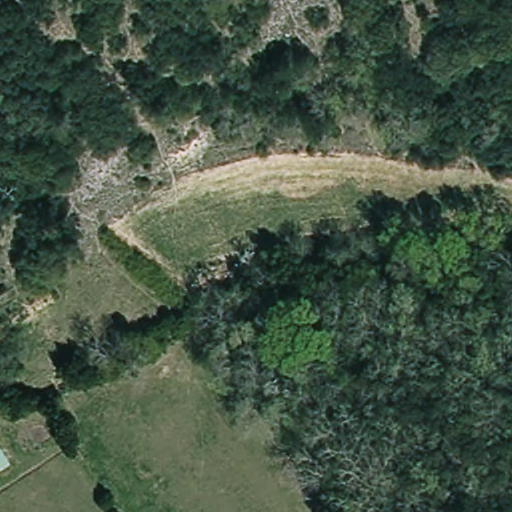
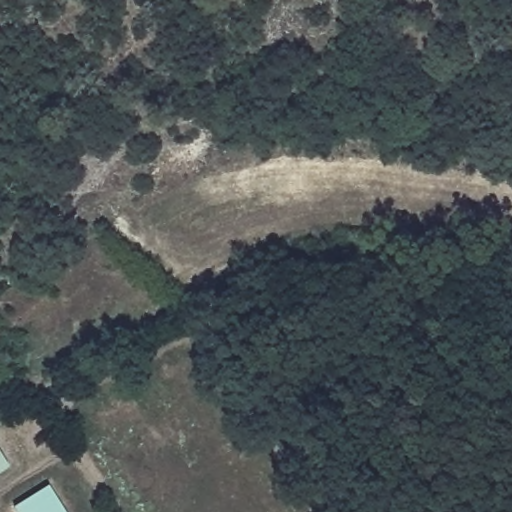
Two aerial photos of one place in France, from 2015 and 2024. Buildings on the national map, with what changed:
unchanged [(0,474),(0,453),(10,468),(0,474)]
new [(15,508),(50,486),(65,512),(17,512),(15,508)]

